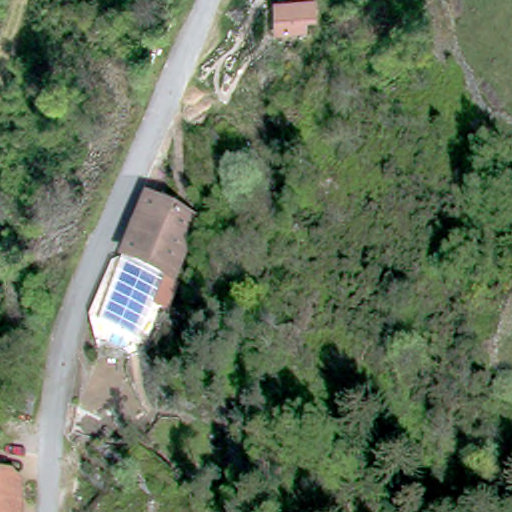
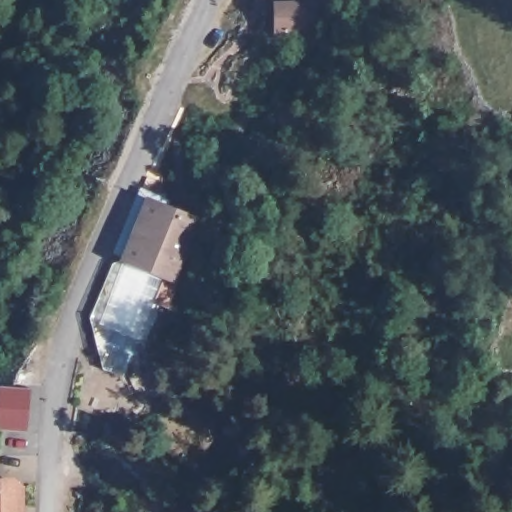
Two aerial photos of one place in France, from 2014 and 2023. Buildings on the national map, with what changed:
unchanged [(303,2),(304,20),(294,21),(294,30),(268,31),(266,4),(303,2)]
unchanged [(148,196),(196,217),(171,272),(124,251),(122,251),(148,196)]
new [(26,431),(0,428),(0,384),(30,387),(26,431)]
unchanged [(23,490),(18,512),(0,512),(0,475),(13,476),(23,490)]

